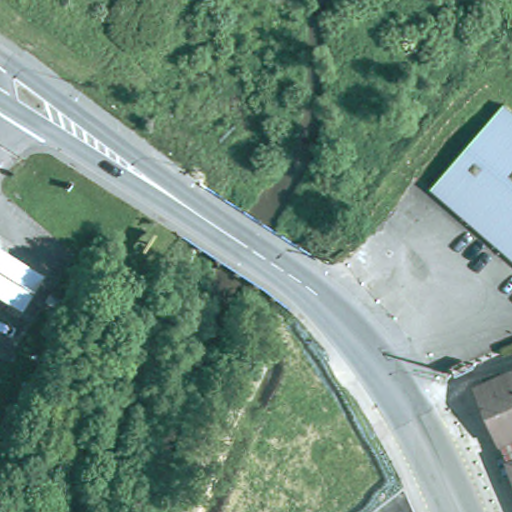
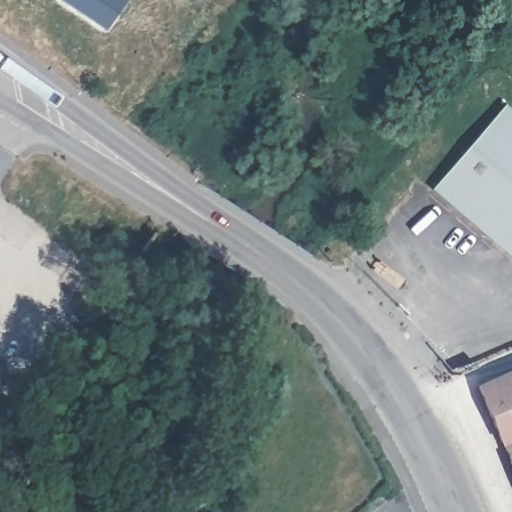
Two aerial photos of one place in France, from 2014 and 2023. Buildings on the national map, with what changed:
new [(65,0),(127,0),(108,30),(65,0)]
unchanged [(512,112),(512,251),(435,190),(502,104),(512,112)]
unchanged [(23,308),(0,295),(0,245),(45,273),(23,308)]
unchanged [(512,372),(512,432),(501,437),(479,386),(512,372)]
unchanged [(512,432),(512,458),(505,442),(503,442),(501,437),(512,432)]

